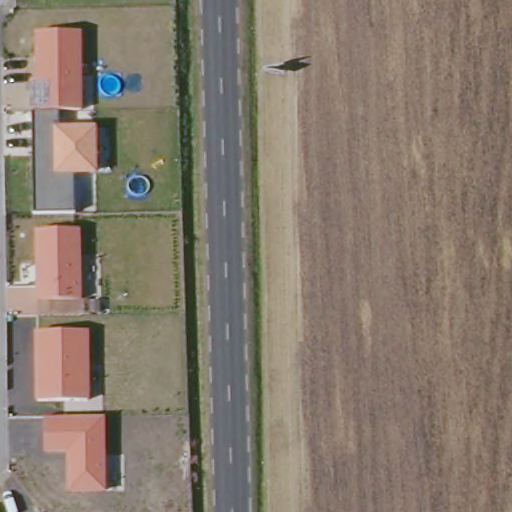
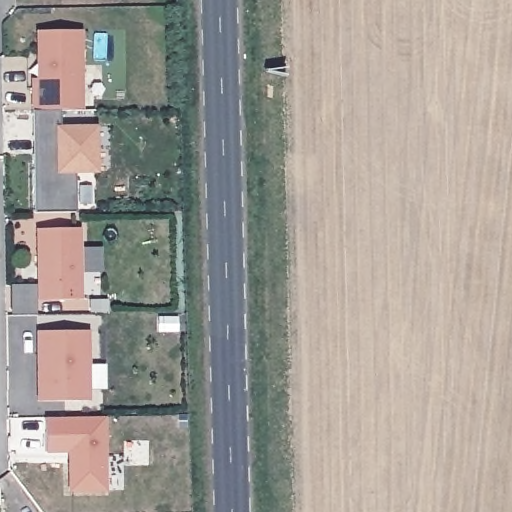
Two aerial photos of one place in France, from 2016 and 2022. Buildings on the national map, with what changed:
unchanged [(84,110),(31,112),(30,81),(36,80),(36,31),(84,30),(84,110)]
unchanged [(58,111),(59,124),(95,124),(96,173),(73,174),(74,212),(34,212),(31,112),(58,111)]
unchanged [(34,229),(80,228),(81,298),(36,299),(34,229)]
unchanged [(33,331),(89,330),(89,399),(34,400),(33,331)]
unchanged [(66,453),(43,454),(43,417),(105,416),(106,492),(67,493),(66,453)]

